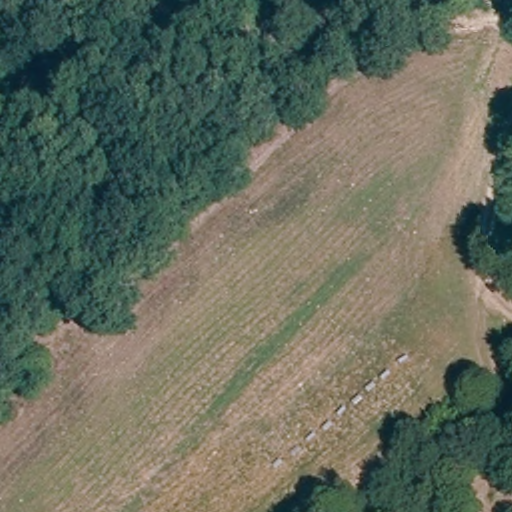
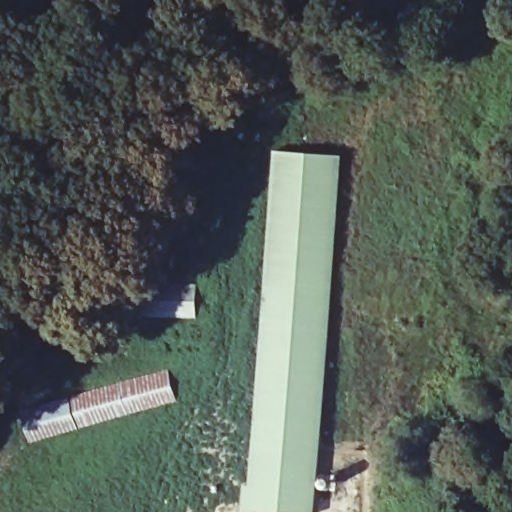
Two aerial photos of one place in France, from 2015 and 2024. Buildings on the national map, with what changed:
new [(315,512),(285,512),(243,509),(244,483),(250,483),(274,151),(341,154),(315,512)]
new [(144,283),(196,284),(197,319),(142,318),(144,283)]
new [(31,443),(22,410),(168,369),(177,402),(31,443)]

